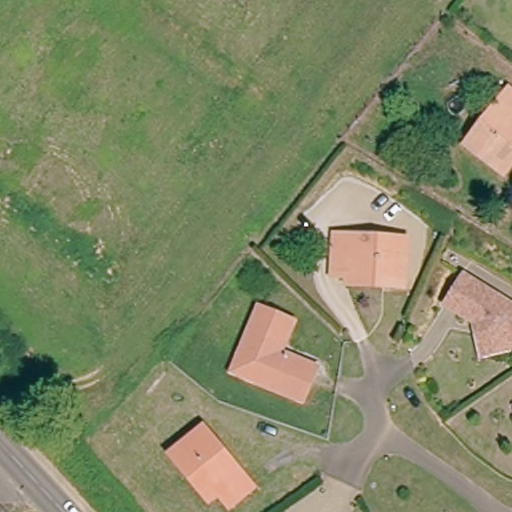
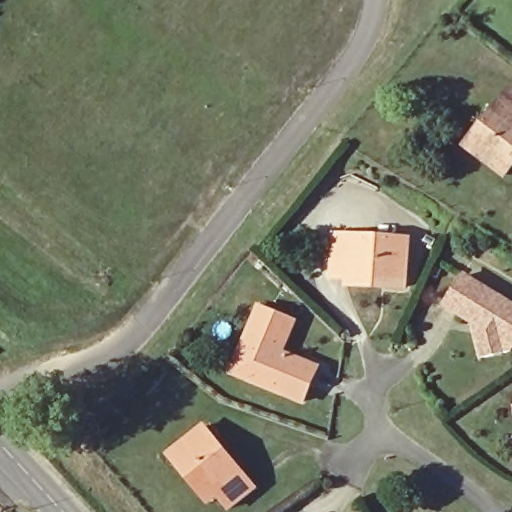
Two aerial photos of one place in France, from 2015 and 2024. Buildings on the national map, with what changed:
unchanged [(466,145),(509,89),(512,91),(512,166),(505,176),(466,145)]
unchanged [(407,286),(390,287),(390,280),(340,283),(337,244),(406,240),(407,286)]
unchanged [(488,345),(483,327),(452,307),(471,278),(512,304),(512,354),(492,359),(488,345)]
unchanged [(241,359),(259,310),(296,324),(284,354),(322,368),(308,404),(252,382),(234,375),(241,359)]
unchanged [(185,471),(174,457),(212,428),(260,493),(235,511),(224,495),(218,499),(211,506),(185,471)]

